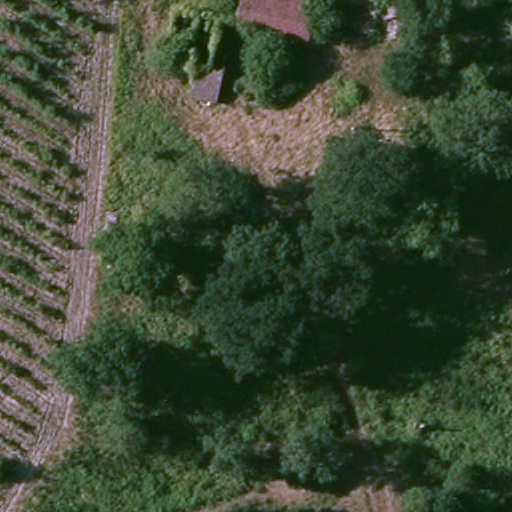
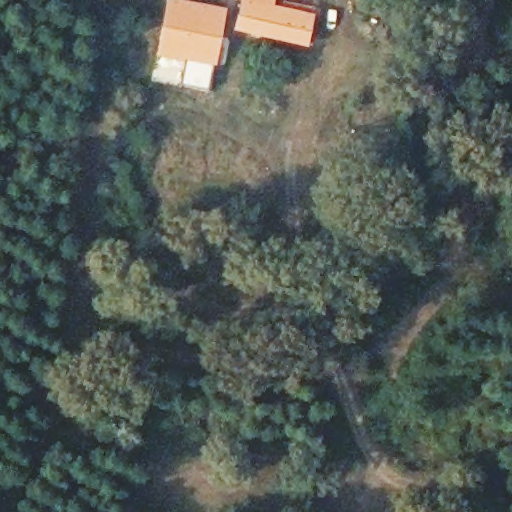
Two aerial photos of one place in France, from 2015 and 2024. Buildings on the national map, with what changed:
new [(165,0),(191,0),(226,7),(216,62),(157,54),(165,0)]
unchanged [(308,32),(241,17),(246,0),(316,0),(308,32)]

